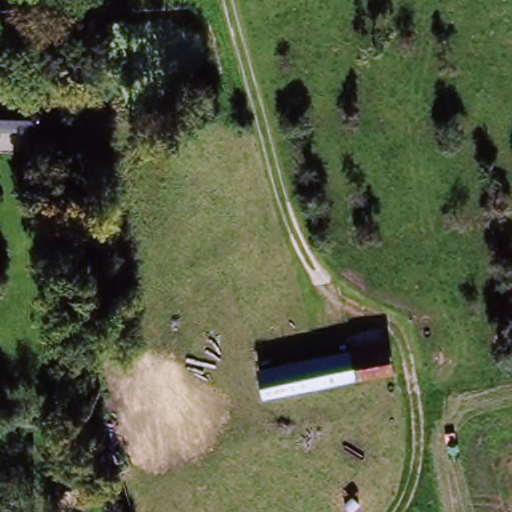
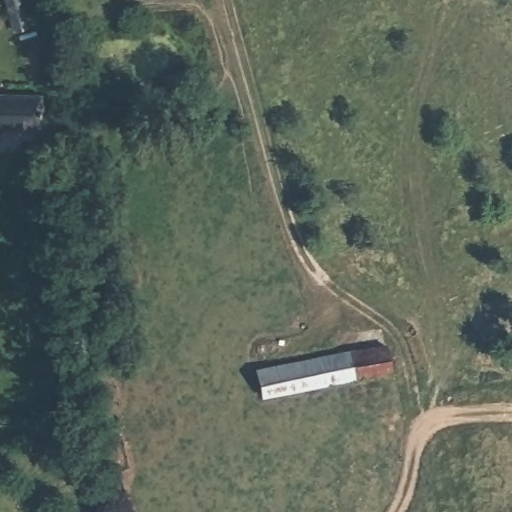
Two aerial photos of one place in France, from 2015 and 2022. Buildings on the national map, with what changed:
unchanged [(24,0),(6,4),(5,0),(24,0)]
unchanged [(48,86),(50,126),(0,129),(0,89),(48,86)]
unchanged [(389,344),(393,376),(269,394),(266,362),(389,344)]

